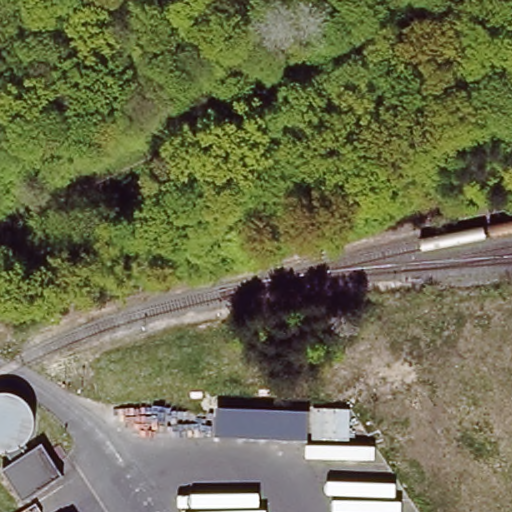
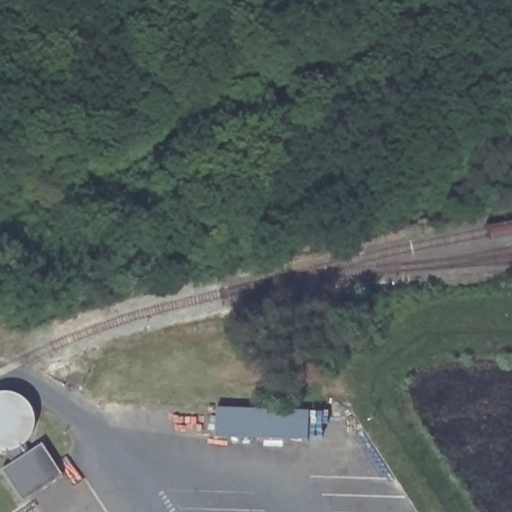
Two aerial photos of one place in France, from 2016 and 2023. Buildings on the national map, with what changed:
unchanged [(32,398),(39,407),(40,417),(40,431),(36,438),(58,474),(25,499),(0,452),(0,391),(10,389),(19,392),(32,398)]

